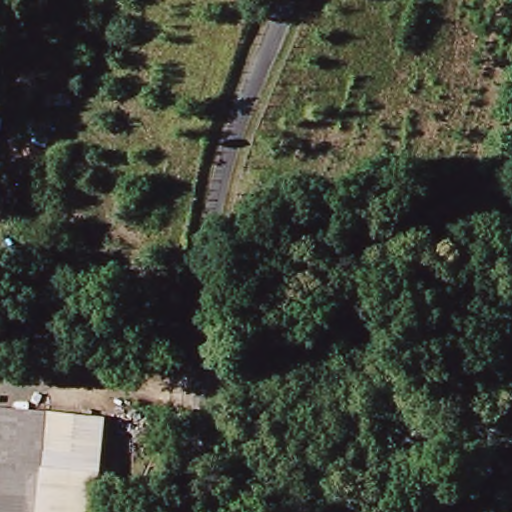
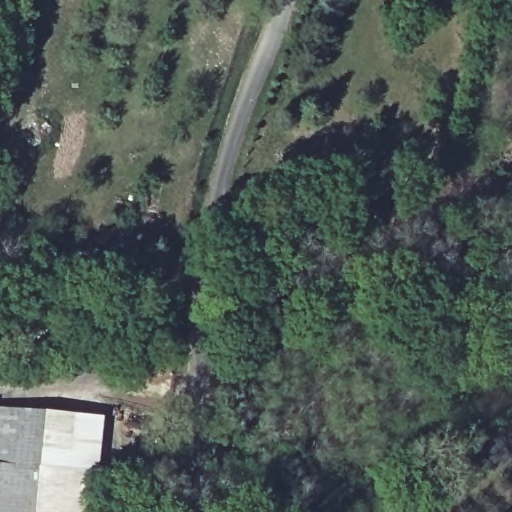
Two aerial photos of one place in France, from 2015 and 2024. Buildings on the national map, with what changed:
unchanged [(0,466),(0,406),(50,412),(44,470),(0,466)]
unchanged [(44,470),(50,412),(100,416),(94,475),(44,470)]
unchanged [(0,466),(44,470),(94,475),(90,512),(0,512),(0,466)]

